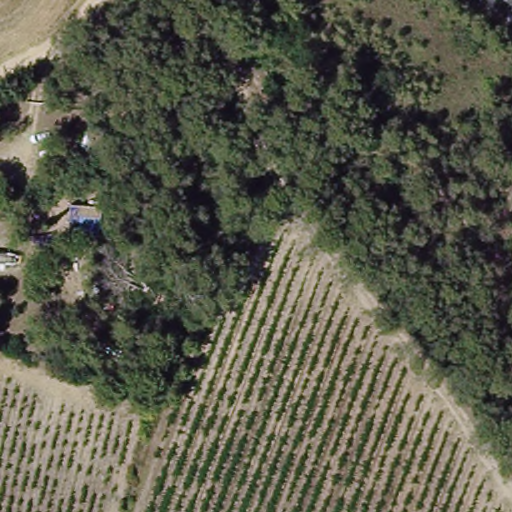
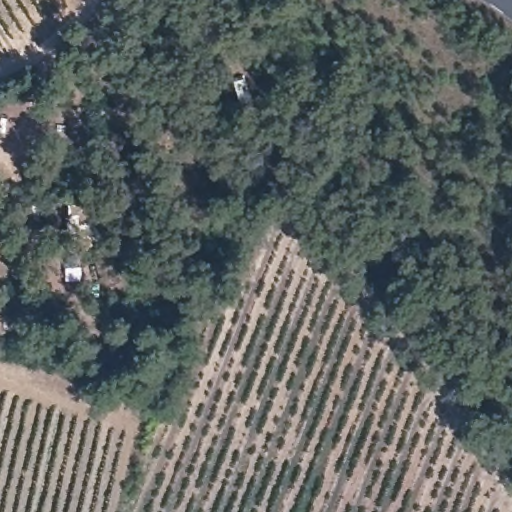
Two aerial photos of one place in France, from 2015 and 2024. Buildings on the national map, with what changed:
unchanged [(67,235),(67,201),(80,201),(100,204),(102,206),(102,232),(100,235),(92,235),(67,235)]

